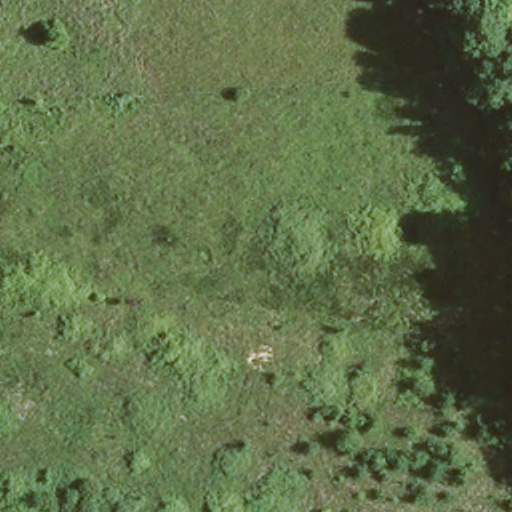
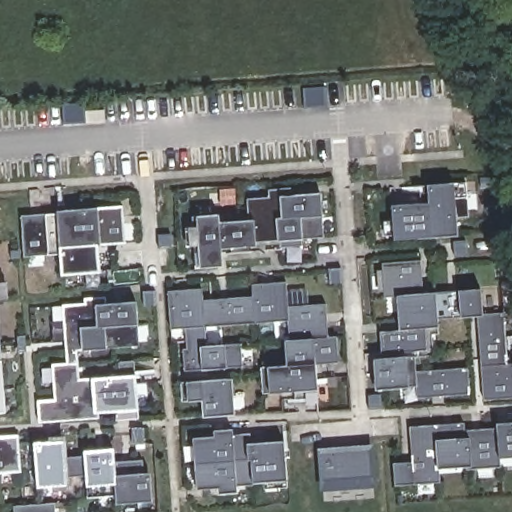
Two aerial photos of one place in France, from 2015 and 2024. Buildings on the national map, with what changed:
new [(86,102),(87,111),(106,110),(107,120),(87,121),(88,122),(65,125),(64,104),(86,102)]
new [(469,216),(457,217),(458,235),(394,239),(392,206),(427,204),(425,185),(453,183),(467,181),(469,216)]
new [(256,242),(255,219),(248,220),(246,199),(269,197),(268,190),(293,187),(294,195),(320,192),(323,216),(324,237),(256,242)]
new [(125,243),(97,245),(99,272),(60,275),(58,254),(24,256),(20,215),(56,211),(97,208),(122,206),(125,243)]
new [(222,248),(223,266),(199,267),(195,216),(219,214),(220,221),(248,220),(255,219),(256,242),(256,245),(222,248)]
new [(420,260),(424,292),(481,289),(483,312),(483,315),(475,316),(437,318),(439,327),(428,327),(430,350),(416,351),(417,372),(468,370),(470,393),(417,396),(417,387),(409,387),(375,389),(373,359),(384,358),(382,332),(398,330),(395,295),(385,295),(381,262),(420,260)]
new [(329,337),(337,336),(339,363),(317,364),(319,390),(268,392),(266,367),(286,366),(284,340),(288,340),(287,321),(205,326),(208,346),(226,345),(240,344),(242,367),(227,368),(201,370),(185,370),(184,350),(187,349),(186,327),(171,327),(168,291),(202,289),(203,300),(252,296),(251,285),(285,282),(288,306),(326,304),(329,337)]
new [(117,419),(115,411),(101,412),(100,418),(40,420),(38,400),(55,398),(52,363),(66,362),(62,303),(86,302),(86,298),(109,296),(111,302),(136,300),(138,323),(139,346),(106,349),(78,350),(80,378),(92,377),(121,376),(119,362),(135,362),(137,375),(139,408),(139,417),(117,419)]
new [(482,400),(475,316),(483,315),(483,312),(502,311),(508,365),(512,365),(512,397),(482,400)]
new [(0,411),(0,338),(5,411),(0,411)]
new [(202,416),(201,400),(187,401),(186,382),(234,379),(237,415),(202,416)]
new [(502,458),(501,466),(469,467),(439,469),(440,482),(395,485),(394,463),(411,462),(409,425),(465,423),(466,429),(496,427),(495,422),(512,422),(512,458),(502,458)]
new [(254,481),(254,485),(236,486),(236,491),(217,493),(217,488),(197,490),(193,440),(213,439),(213,430),(233,430),(233,434),(250,432),(253,442),(284,440),(287,480),(254,481)]
new [(0,435),(19,435),(22,470),(0,472),(0,435)]
new [(114,503),(114,495),(87,496),(85,485),(84,476),(66,476),(66,485),(37,486),(35,442),(64,440),(66,456),(83,455),(83,450),(114,448),(115,461),(142,460),(144,473),(150,472),(151,500),(114,503)]
new [(320,491),(317,449),(374,445),(377,487),(320,491)]
new [(55,503),(56,512),(14,512),(13,505),(55,503)]

